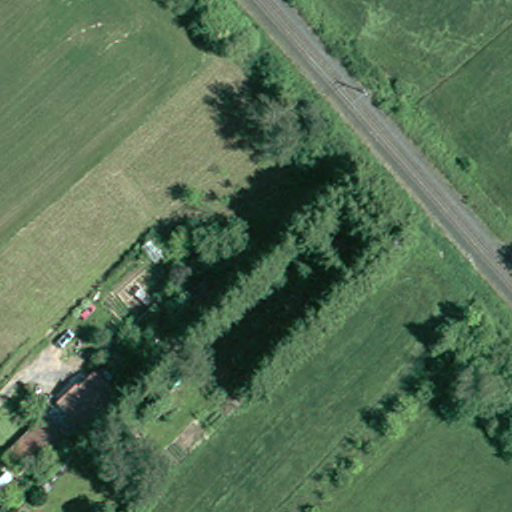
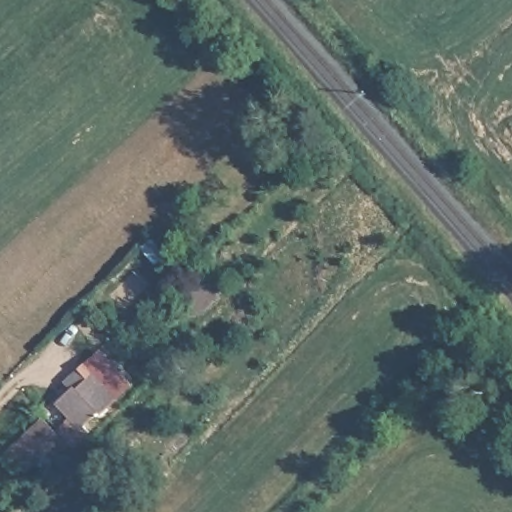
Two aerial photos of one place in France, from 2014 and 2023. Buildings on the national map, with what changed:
new [(71,416),(58,401),(72,389),(65,380),(101,348),(133,384),(105,411),(103,409),(86,424),(91,431),(73,448),(68,443),(56,429),(71,416)]
unchanged [(68,443),(50,459),(38,446),(15,469),(5,459),(46,419),(68,443)]

